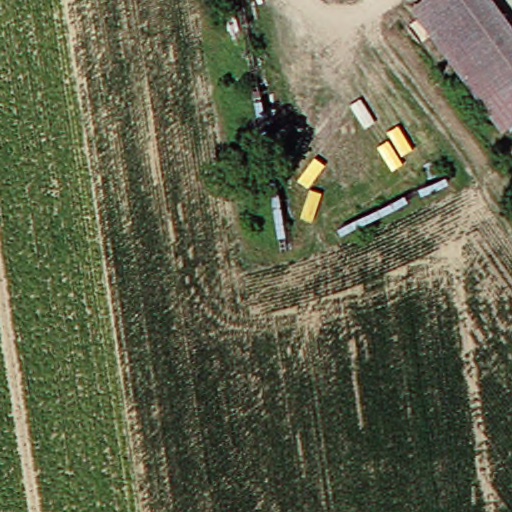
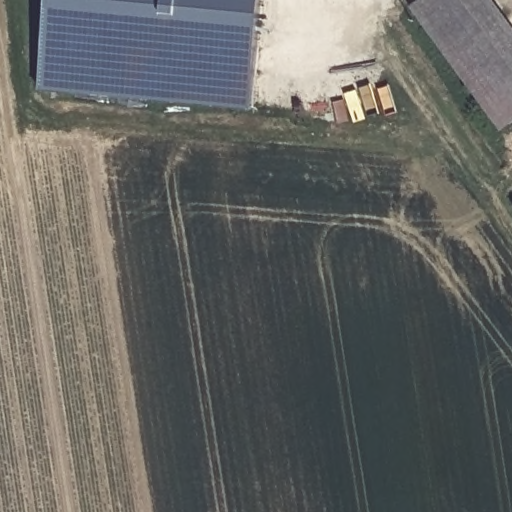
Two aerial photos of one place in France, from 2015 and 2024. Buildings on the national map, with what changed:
new [(39,91),(45,0),(259,0),(250,110),(39,91)]
unchanged [(412,2),(416,0),(489,0),(512,37),(512,120),(494,131),(412,2)]

